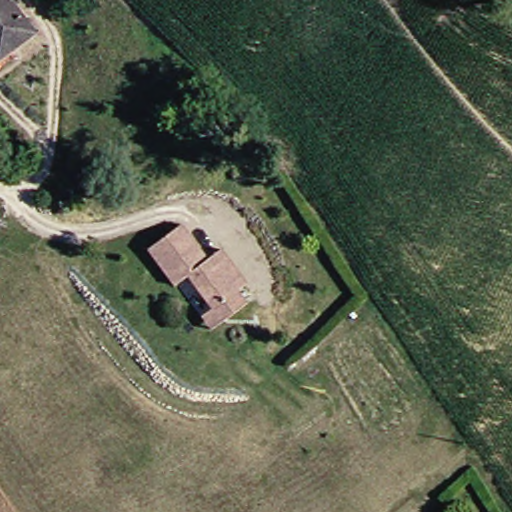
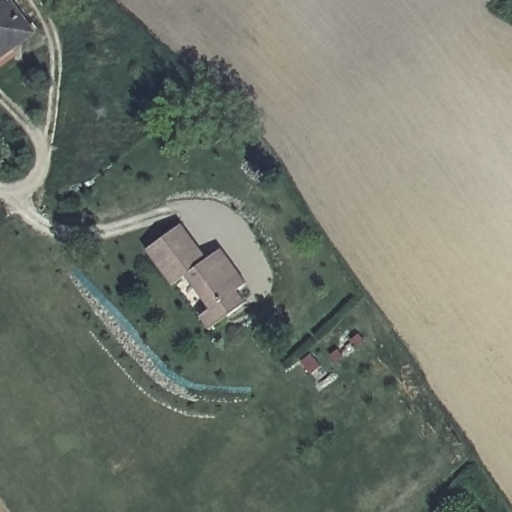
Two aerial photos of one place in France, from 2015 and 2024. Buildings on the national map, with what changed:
unchanged [(0,41),(0,0),(26,0),(46,27),(10,55),(0,41)]
unchanged [(211,317),(221,310),(195,276),(183,285),(157,250),(190,225),(217,260),(230,250),(255,283),(245,291),(254,302),(236,316),(220,329),(211,317)]

